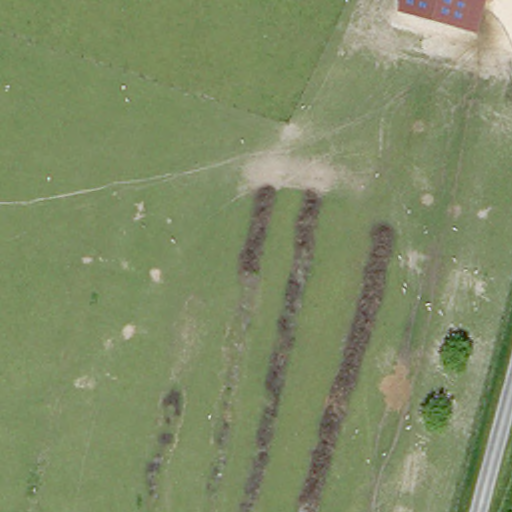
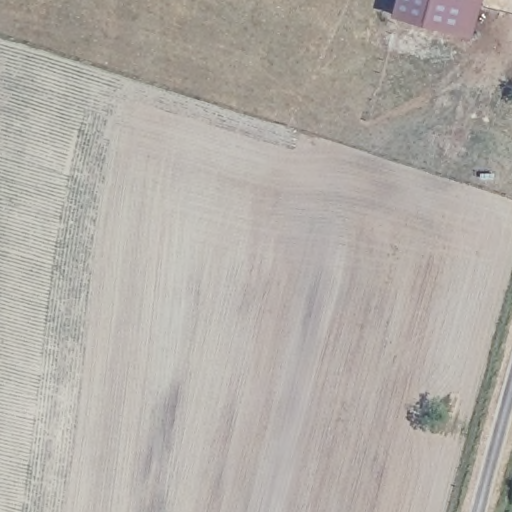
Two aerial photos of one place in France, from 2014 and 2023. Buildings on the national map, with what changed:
unchanged [(398,14),(402,0),(486,0),(477,35),(398,14)]

